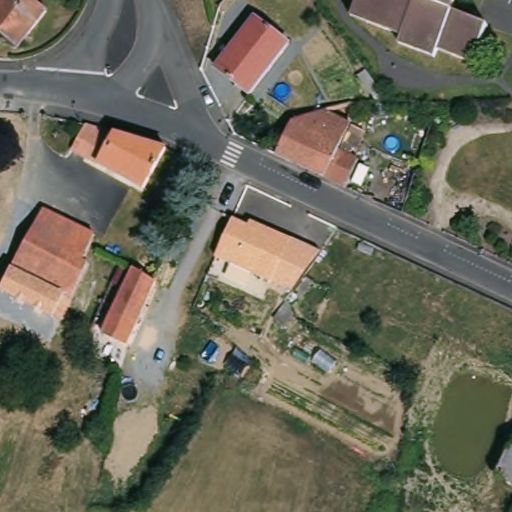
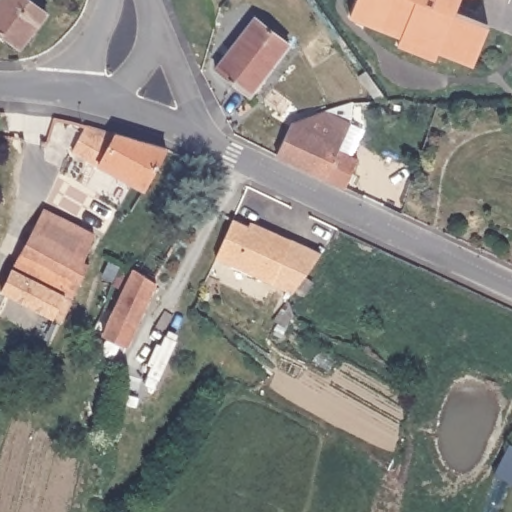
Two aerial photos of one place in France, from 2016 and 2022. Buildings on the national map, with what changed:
unchanged [(51,10),(22,49),(0,29),(0,0),(37,0),(51,10)]
unchanged [(454,8),(492,22),(475,59),(442,45),(439,52),(402,40),(405,31),(355,11),(359,0),(457,0),(454,8)]
unchanged [(254,17),(287,44),(249,93),(214,66),(254,17)]
unchanged [(351,126),(345,140),(366,150),(350,187),(279,154),(293,124),(296,120),(352,99),(351,126)]
unchanged [(428,112),(417,109),(421,99),(432,101),(428,112)]
unchanged [(101,123),(164,148),(142,186),(74,145),(86,121),(101,123)]
unchanged [(92,234),(80,256),(85,260),(64,307),(59,317),(7,292),(0,289),(0,283),(40,209),(92,234)]
unchanged [(252,225),(254,220),(280,232),(295,240),(277,278),(273,284),(217,257),(237,217),(248,223),(252,225)]
unchanged [(133,335),(132,338),(130,344),(128,343),(110,335),(106,333),(109,328),(134,268),(156,281),(143,312),(133,335)]
unchanged [(510,465),(511,461),(512,459),(512,476),(506,473),(510,465)]

